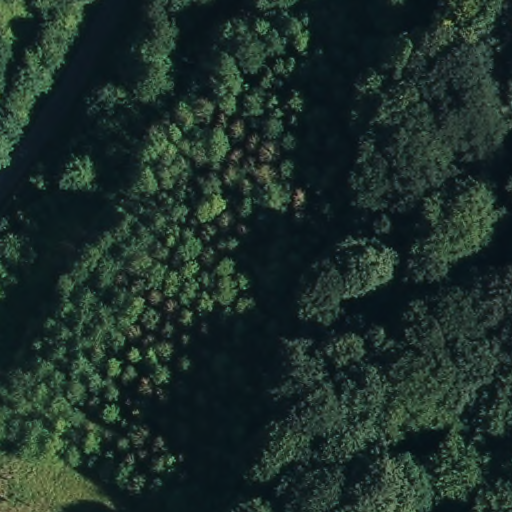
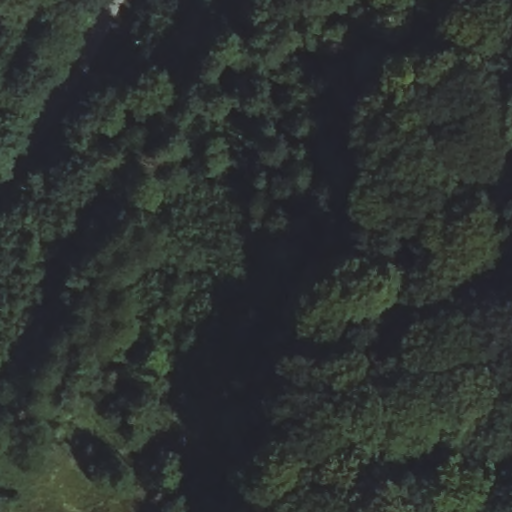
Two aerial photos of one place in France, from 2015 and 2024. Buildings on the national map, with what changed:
unchanged [(205,61),(193,76),(168,57),(190,0),(218,0),(197,55),(205,61)]

